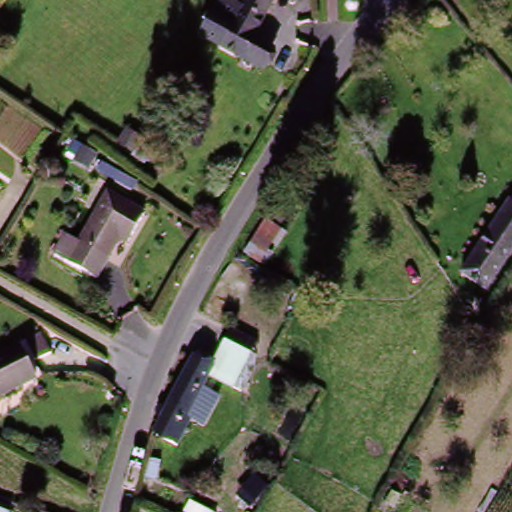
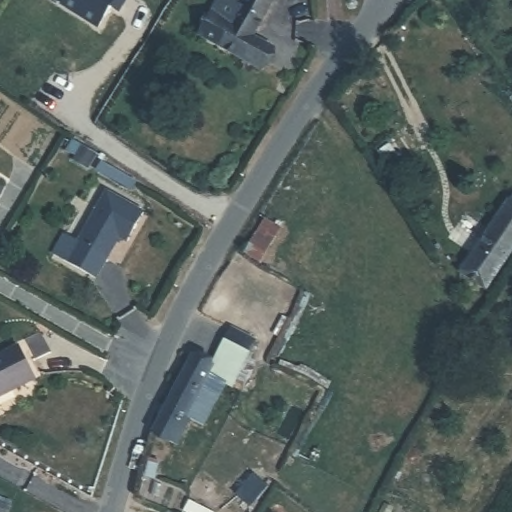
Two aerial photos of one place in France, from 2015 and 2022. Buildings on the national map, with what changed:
new [(111,5),(98,26),(62,3),(64,0),(125,0),(118,10),(111,5)]
unchanged [(225,46),(211,37),(201,31),(219,0),(275,0),(256,36),(272,48),(261,68),(243,57),(225,46)]
unchanged [(133,192),(102,172),(108,161),(138,180),(140,181),(133,192)]
unchanged [(53,255),(64,234),(74,239),(100,194),(137,212),(123,240),(114,237),(93,276),(53,255)]
unchanged [(512,244),(486,282),(464,269),(512,195),(512,244)]
unchanged [(273,217),(281,205),(291,210),(284,224),(273,217)]
unchanged [(241,251),(263,220),(288,234),(267,267),(241,251)]
unchanged [(0,395),(0,356),(17,348),(27,342),(25,340),(40,331),(51,352),(25,365),(33,380),(0,395)]
unchanged [(208,373),(220,350),(228,333),(256,347),(235,385),(213,375),(173,451),(150,440),(188,364),(208,373)]

